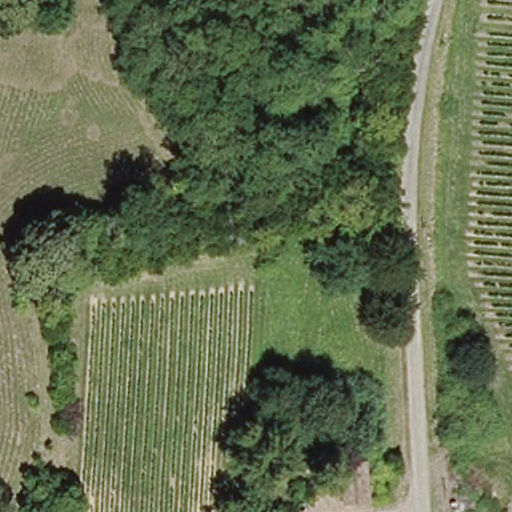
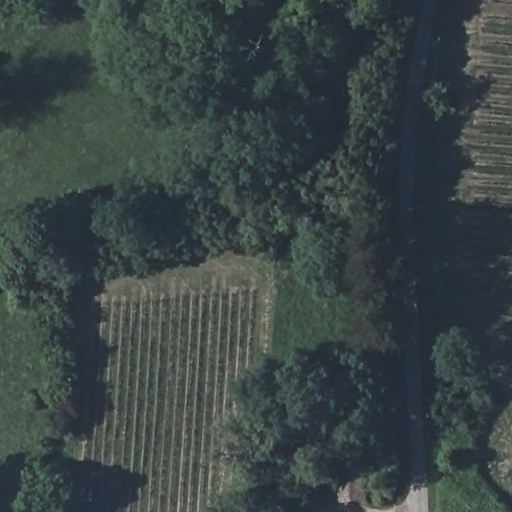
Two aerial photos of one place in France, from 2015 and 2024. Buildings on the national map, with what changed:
unchanged [(362,466),(366,505),(344,508),(339,469),(362,466)]

